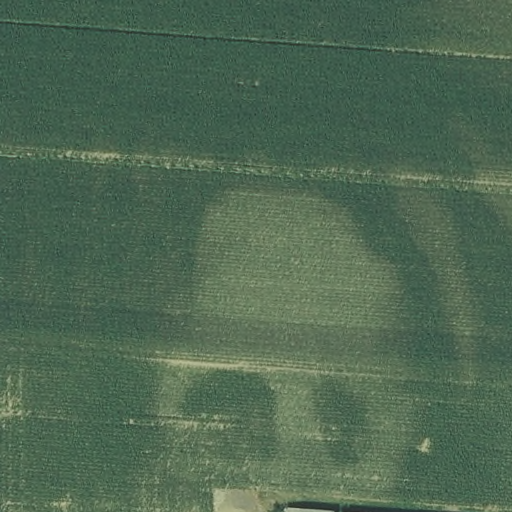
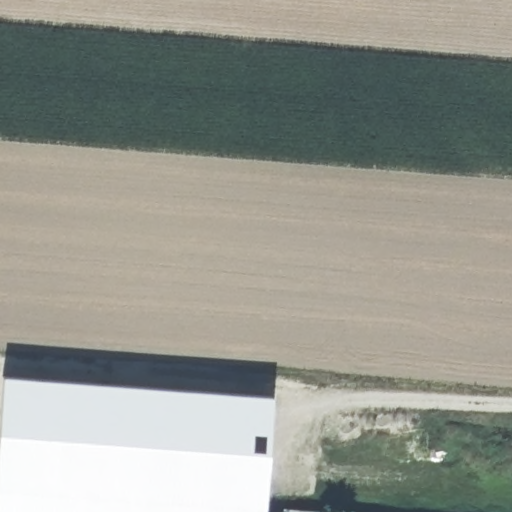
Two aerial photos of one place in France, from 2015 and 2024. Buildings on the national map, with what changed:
new [(274,392),(263,512),(0,512),(0,386),(1,371),(274,392)]

